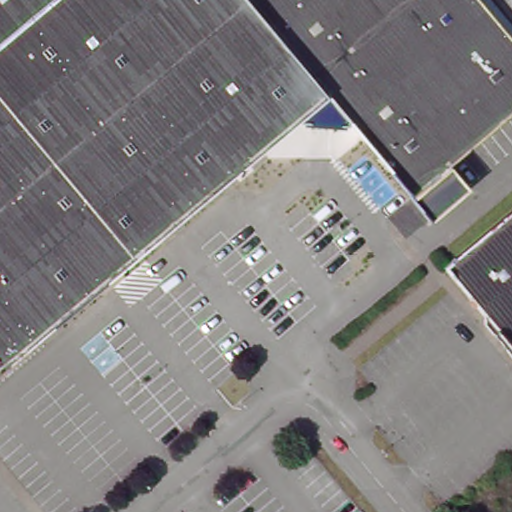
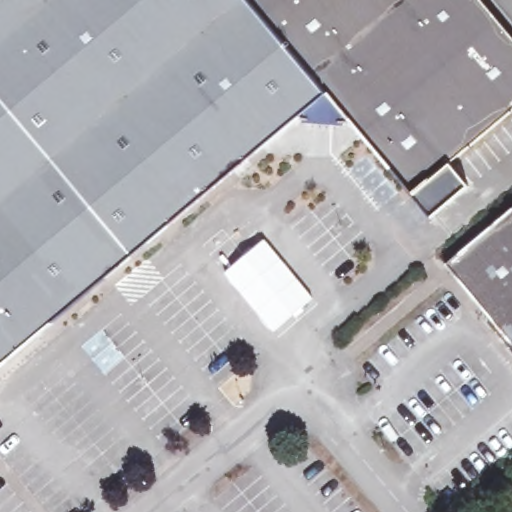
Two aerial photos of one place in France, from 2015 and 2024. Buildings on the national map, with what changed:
unchanged [(385,174),(388,172),(362,141),(360,143),(358,141),(360,139),(350,127),(352,125),(326,94),(0,368),(0,0),(482,0),(512,36),(512,113),(511,114),(450,165),(470,188),(432,220),(402,185),(400,186),(390,174),(387,176),(385,174)]
unchanged [(512,345),(445,266),(512,210),(512,345)]
new [(263,237),(315,298),(273,333),(222,271),(263,237)]

